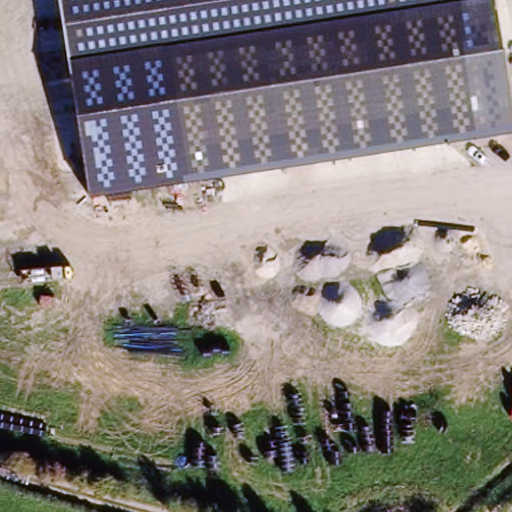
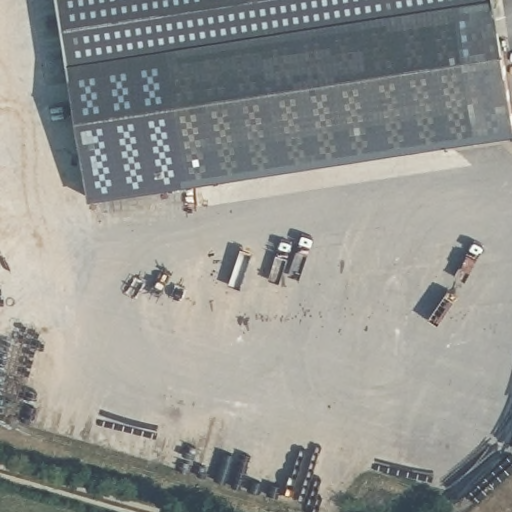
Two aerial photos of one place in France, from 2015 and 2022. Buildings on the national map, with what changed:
unchanged [(90,206),(50,0),(489,0),(512,127),(512,130),(90,206)]

